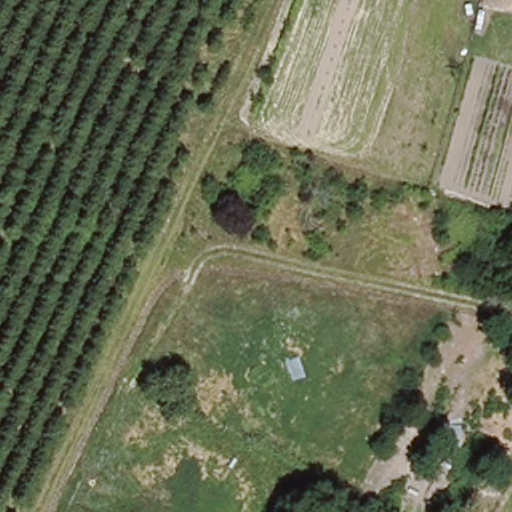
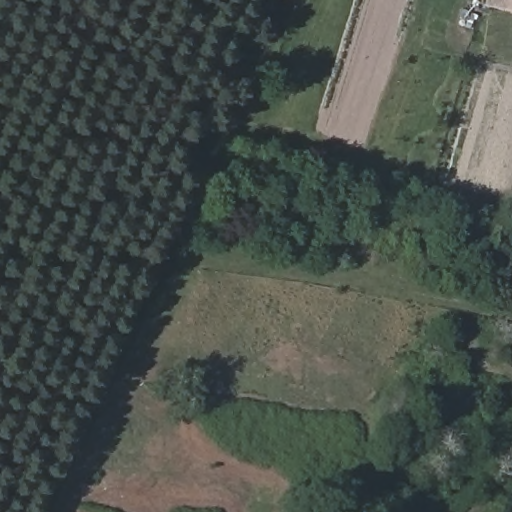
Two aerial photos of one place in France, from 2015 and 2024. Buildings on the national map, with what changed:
unchanged [(499,6),(482,2),(482,0),(512,0),(512,8),(499,6)]

